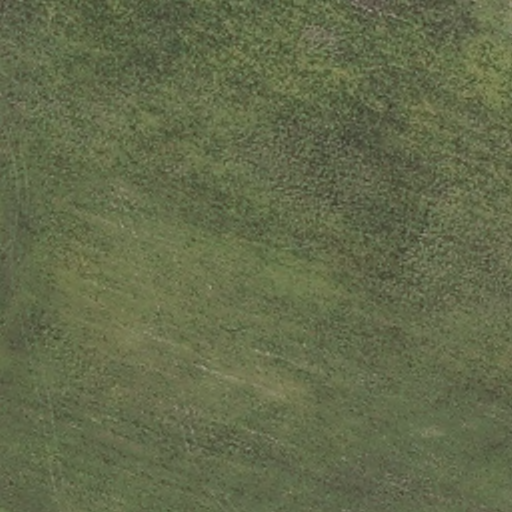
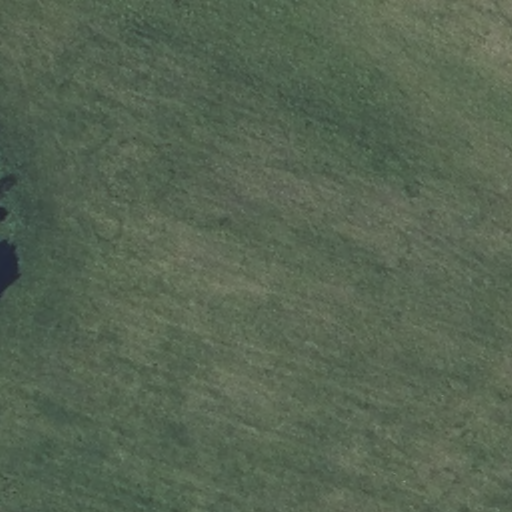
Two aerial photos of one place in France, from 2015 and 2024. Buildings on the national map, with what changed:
[]

